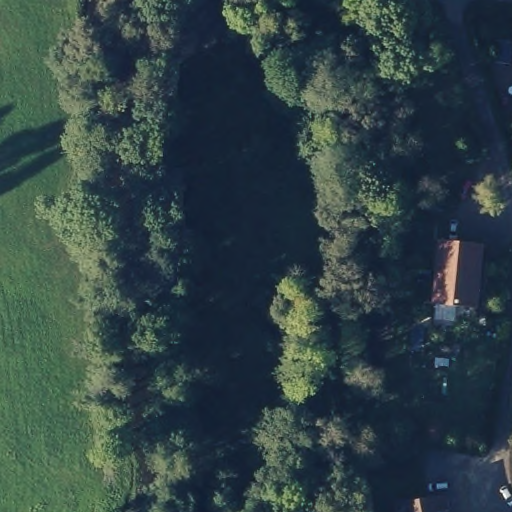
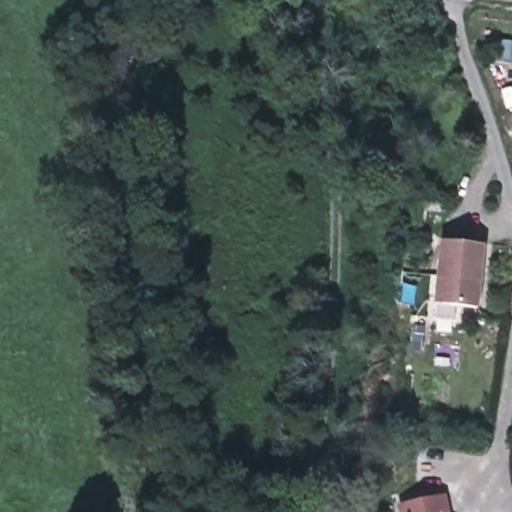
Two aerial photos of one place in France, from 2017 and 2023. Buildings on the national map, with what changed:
unchanged [(478,308),(435,304),(442,241),(485,245),(478,308)]
unchanged [(366,484),(351,482),(353,463),(369,465),(366,484)]
unchanged [(444,496),(447,512),(402,512),(401,506),(444,496)]

